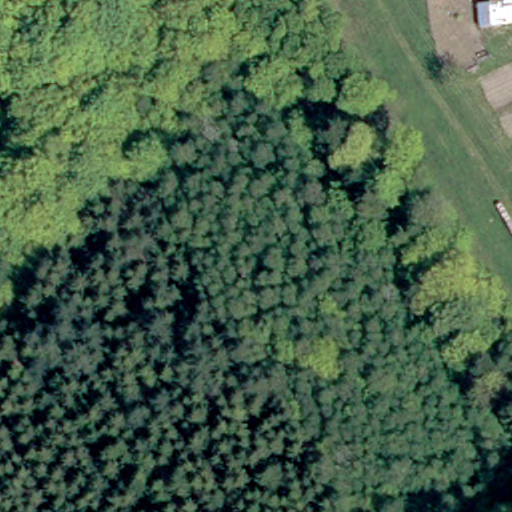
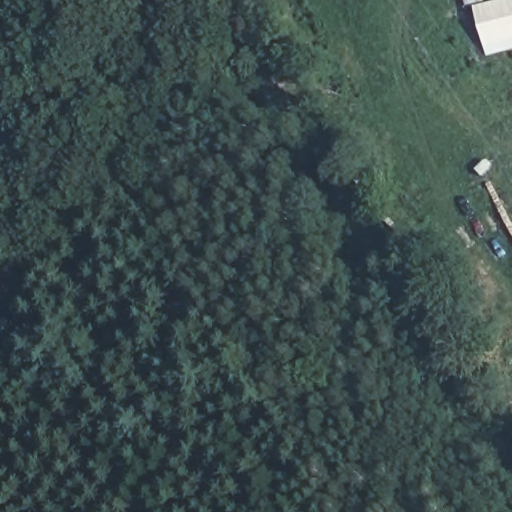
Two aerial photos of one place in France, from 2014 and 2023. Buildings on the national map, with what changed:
new [(485,55),(473,6),(500,0),(512,0),(512,48),(485,55)]

